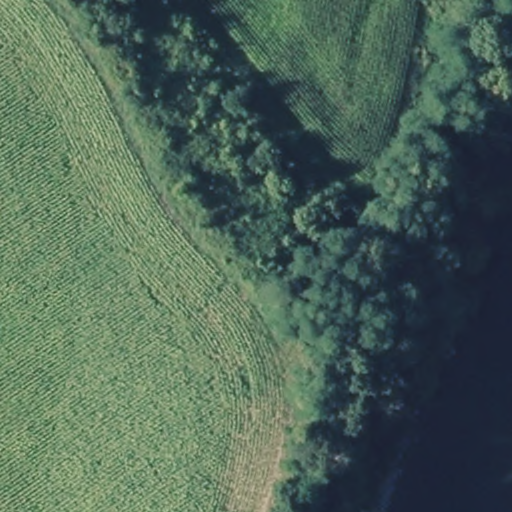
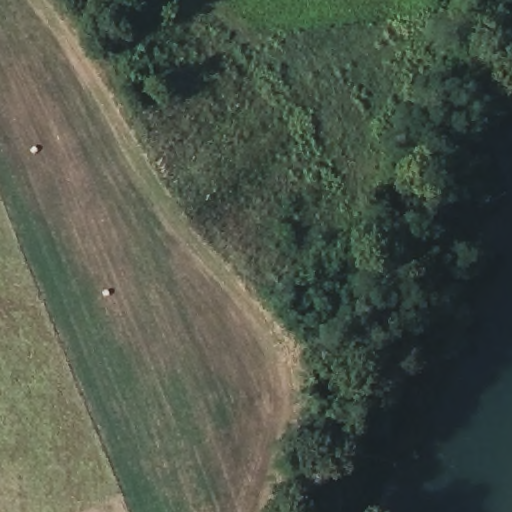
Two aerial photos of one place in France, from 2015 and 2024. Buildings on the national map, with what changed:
[]

